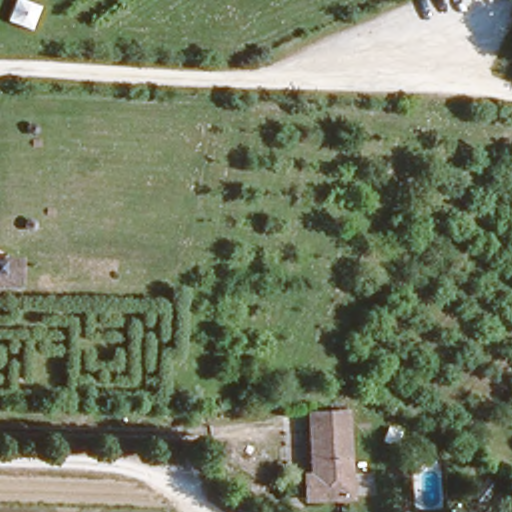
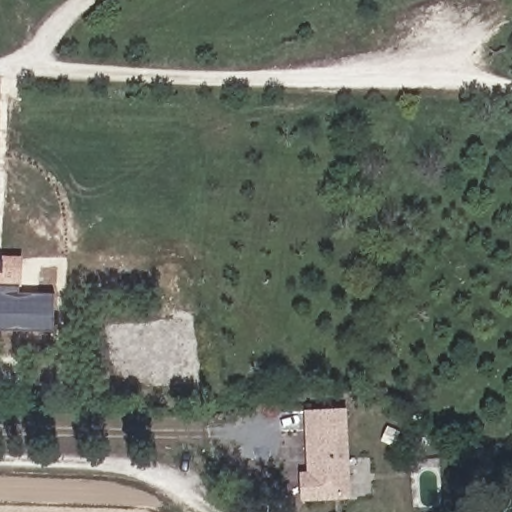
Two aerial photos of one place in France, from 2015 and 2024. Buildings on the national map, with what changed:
unchanged [(41,0),(30,29),(2,14),(9,0),(41,0)]
unchanged [(0,256),(22,256),(20,288),(0,288),(0,256)]
new [(55,294),(55,331),(0,330),(0,288),(20,288),(20,292),(55,294)]
unchanged [(303,468),(315,468),(312,407),(348,406),(352,489),(304,490),(303,468)]

